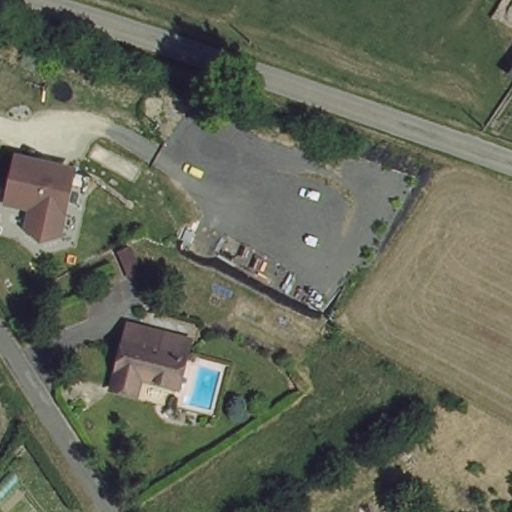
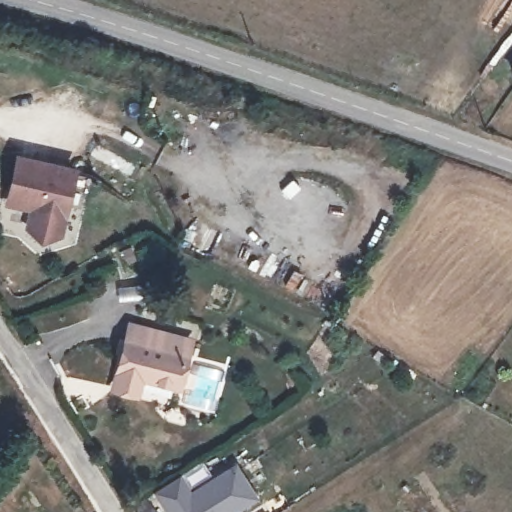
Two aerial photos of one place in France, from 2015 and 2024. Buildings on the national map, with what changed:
unchanged [(511,65),(512,64),(512,66),(511,65)]
unchanged [(66,233),(40,244),(26,228),(28,211),(6,206),(16,152),(77,167),(66,233)]
unchanged [(120,242),(131,236),(143,258),(132,265),(120,242)]
unchanged [(175,390),(140,381),(137,393),(114,387),(126,341),(131,342),(135,327),(188,340),(175,390)]
new [(191,486),(236,461),(259,498),(237,512),(165,512),(151,492),(182,473),(191,486)]

